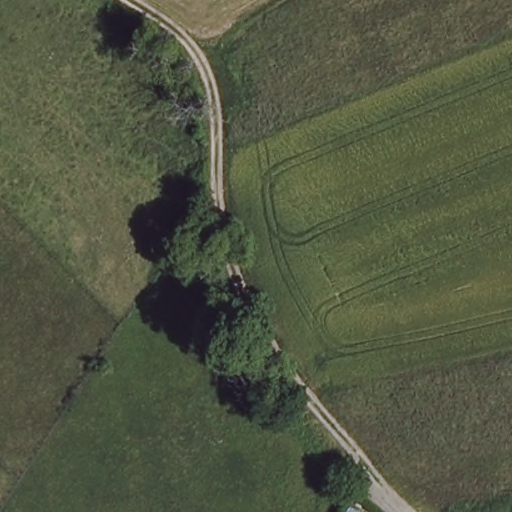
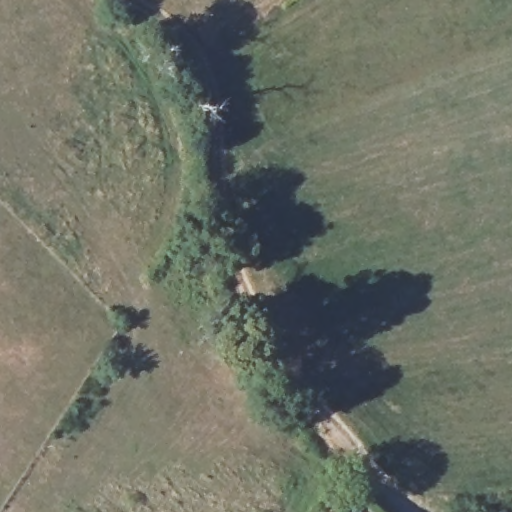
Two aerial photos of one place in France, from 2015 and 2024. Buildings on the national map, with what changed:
unchanged [(382,512),(379,512),(380,511),(382,512)]

